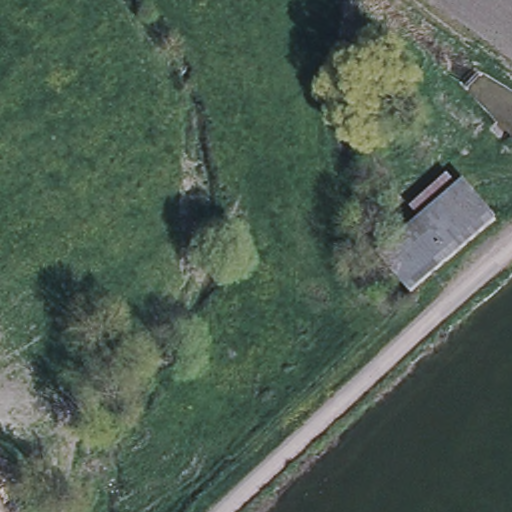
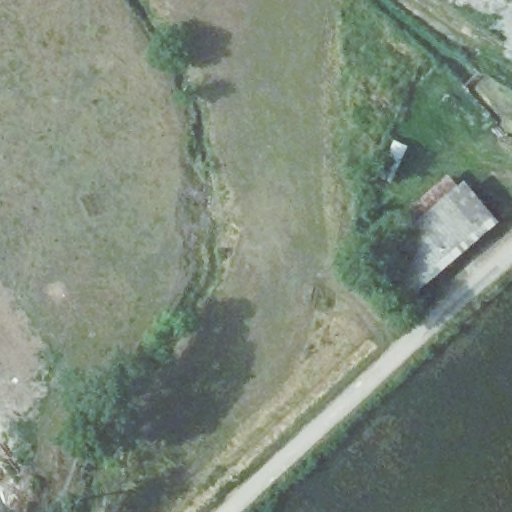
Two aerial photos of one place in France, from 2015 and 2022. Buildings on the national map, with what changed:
unchanged [(503,227),(418,299),(376,245),(459,174),(503,227)]

